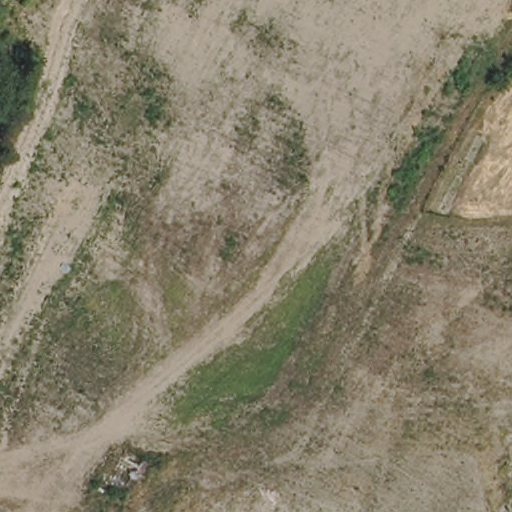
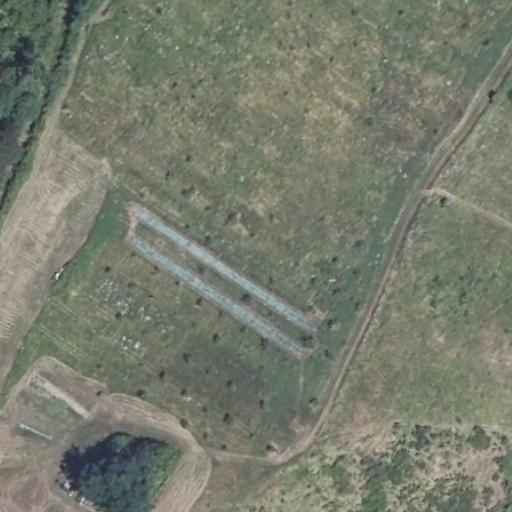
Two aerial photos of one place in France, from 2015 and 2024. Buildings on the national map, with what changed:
unchanged [(123,489),(116,485),(130,458),(153,472),(139,497),(123,489)]

